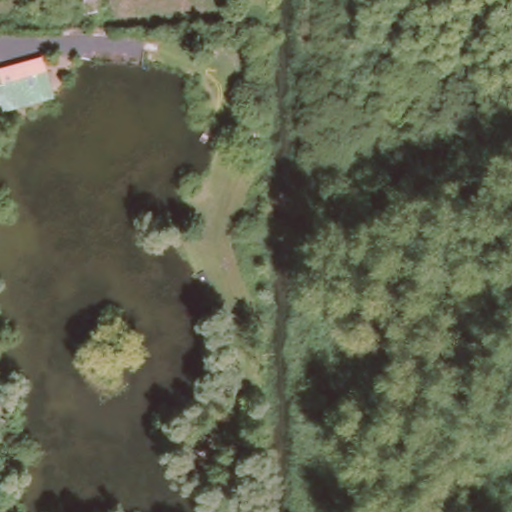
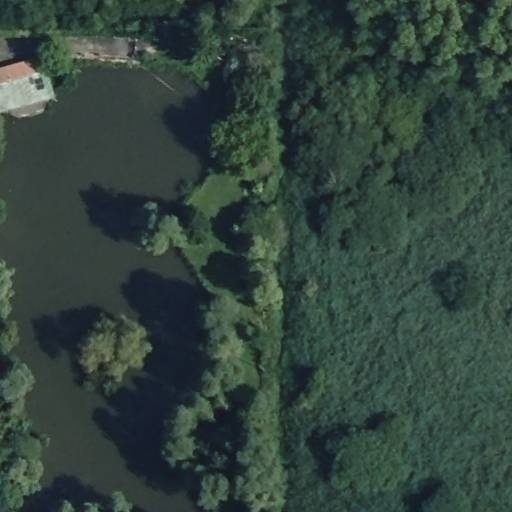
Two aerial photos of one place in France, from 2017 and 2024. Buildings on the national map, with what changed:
unchanged [(43,90),(0,100),(0,79),(35,71),(43,90)]

